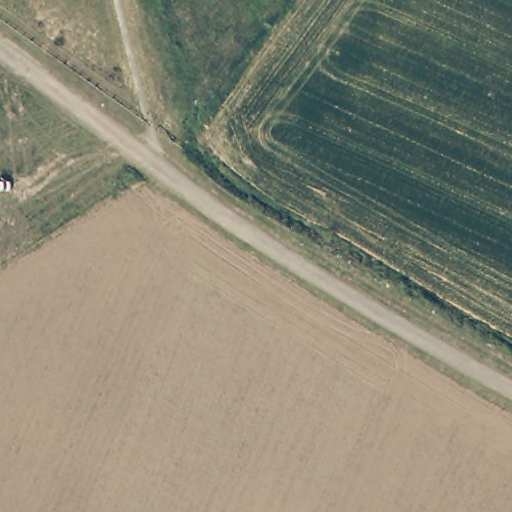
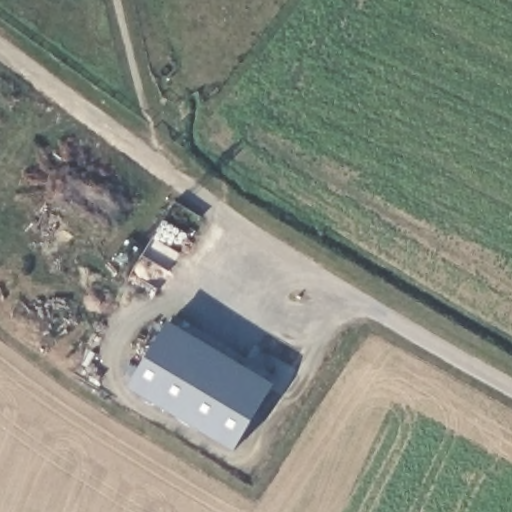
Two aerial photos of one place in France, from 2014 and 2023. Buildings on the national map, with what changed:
new [(233,451),(127,388),(169,321),(273,384),(233,451)]

